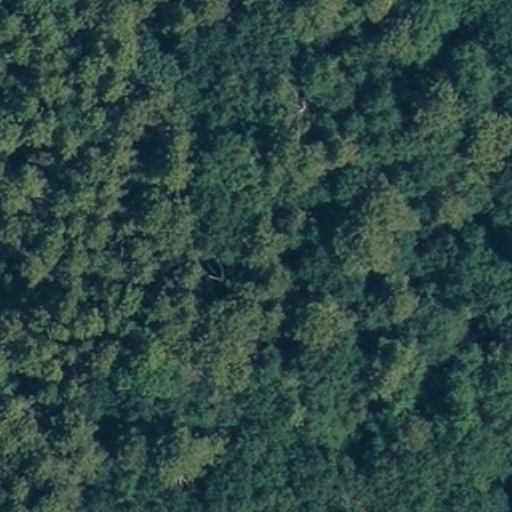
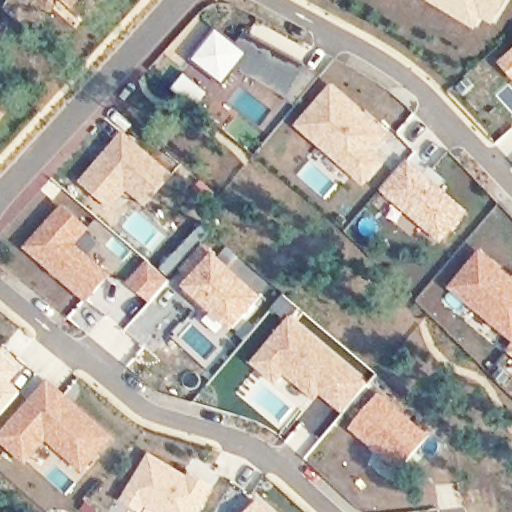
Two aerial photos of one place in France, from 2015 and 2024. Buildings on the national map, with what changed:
new [(61,0),(112,0),(90,24),(61,0)]
new [(487,19),(480,30),(427,0),(512,0),(512,4),(499,26),(487,19)]
new [(239,46),(245,37),(297,65),(285,87),(239,65),(226,81),(199,61),(221,34),(239,46)]
new [(512,79),(496,62),(512,48),(512,79)]
new [(185,73),(210,94),(196,110),(171,89),(185,73)]
new [(392,136),(377,151),(390,161),(367,187),(297,126),(335,84),(392,136)]
new [(10,113),(0,124),(0,104),(10,113)]
new [(122,130),(174,175),(145,207),(127,191),(109,209),(78,181),(122,130)]
new [(409,157),(470,213),(439,246),(378,190),(409,157)]
new [(94,229),(79,244),(115,275),(89,302),(25,248),(65,204),(94,229)]
new [(512,337),(450,288),(481,251),(512,275),(512,337)]
new [(262,299),(236,328),(190,286),(220,257),(262,299)]
new [(145,259),(170,281),(149,305),(125,284),(145,259)]
new [(367,384),(345,411),(325,394),(308,413),(254,367),(293,321),(367,384)]
new [(512,348),(512,354),(508,351),(512,348)]
new [(24,370),(14,382),(24,392),(0,418),(0,350),(24,370)]
new [(116,438),(85,472),(50,442),(27,464),(0,441),(0,435),(50,379),(116,438)]
new [(427,437),(401,468),(355,431),(383,399),(427,437)]
new [(191,479),(195,474),(213,487),(197,512),(163,512),(147,503),(144,509),(126,499),(152,456),(191,479)]
new [(270,512),(250,512),(259,502),(270,512)]

